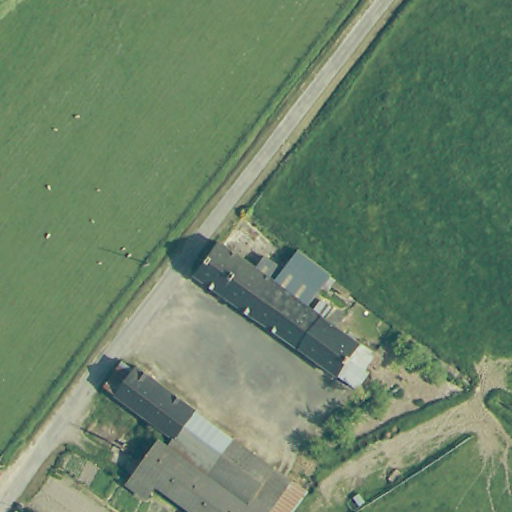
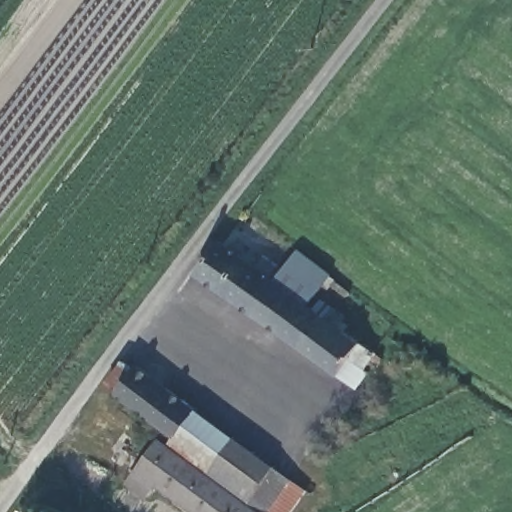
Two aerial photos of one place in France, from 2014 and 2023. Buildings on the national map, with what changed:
unchanged [(266,259),(282,272),(291,260),(298,265),(303,258),(328,277),(325,281),(333,287),(327,296),(318,290),(302,310),(307,313),(315,303),(340,323),(333,332),(370,359),(347,390),(194,279),(219,245),(224,249),(255,273),(266,259)]
unchanged [(106,391),(125,365),(127,367),(134,371),(138,367),(195,411),(173,442),(110,393),(106,391)]
unchanged [(173,442),(195,411),(282,478),(304,495),(290,512),(256,512),(251,509),(169,448),(173,442)]
unchanged [(159,486),(146,502),(126,487),(138,472),(157,447),(166,453),(169,448),(251,509),(256,512),(199,512),(178,499),(159,486)]

